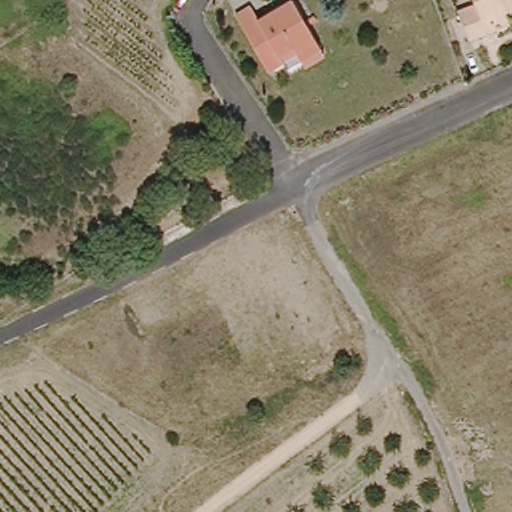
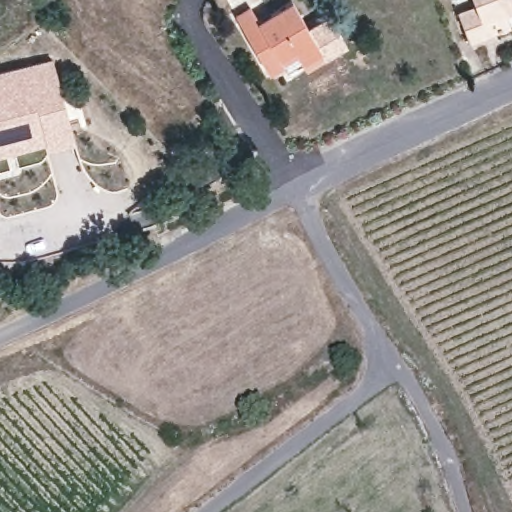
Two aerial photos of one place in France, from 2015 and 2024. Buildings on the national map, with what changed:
unchanged [(462,13),(478,6),(475,0),(512,0),(512,11),(508,12),(512,23),(512,24),(498,30),(491,33),(474,40),(462,13)]
unchanged [(324,51),(304,61),(296,47),(281,57),(283,62),(273,67),(269,69),(238,15),(253,6),(261,22),(297,2),(324,51)]
new [(44,139),(0,150),(0,71),(51,58),(71,139),(46,146),(44,139)]

